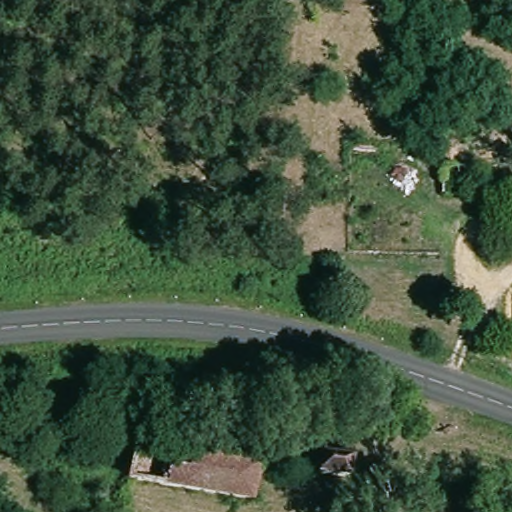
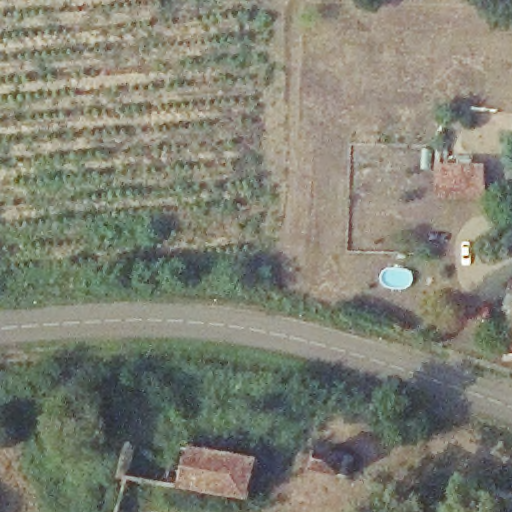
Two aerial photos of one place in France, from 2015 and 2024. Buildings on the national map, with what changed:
new [(440,165),(488,166),(488,200),(439,199),(440,165)]
unchanged [(255,500),(134,481),(141,439),(265,459),(255,500)]
unchanged [(316,474),(319,455),(349,463),(344,481),(316,474)]

